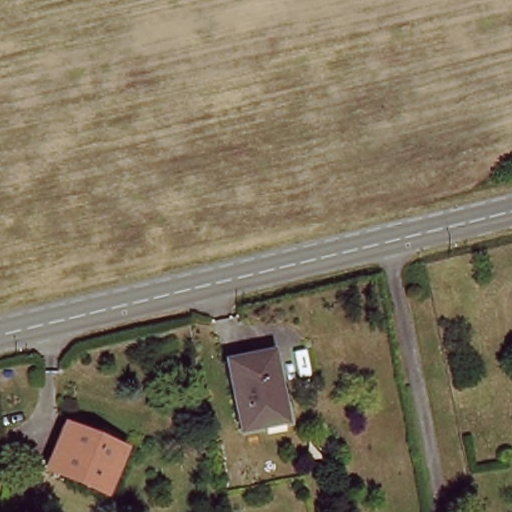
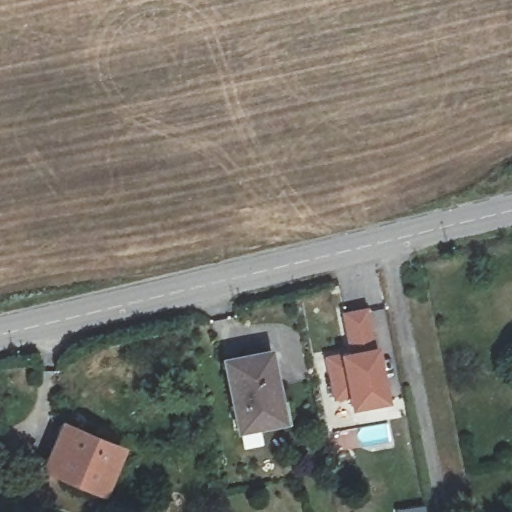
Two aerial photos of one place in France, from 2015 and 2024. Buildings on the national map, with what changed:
new [(339,353),(350,350),(340,311),(365,306),(372,347),(376,347),(389,403),(350,412),(347,394),(334,398),(325,357),(339,353)]
unchanged [(286,417),(238,428),(221,358),(272,349),(286,417)]
unchanged [(112,486),(51,477),(58,432),(118,440),(112,486)]

